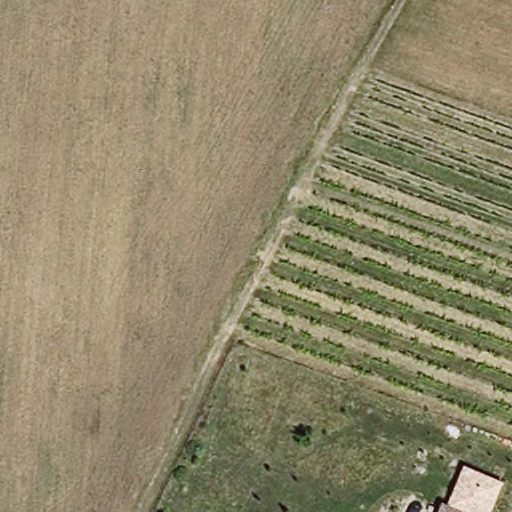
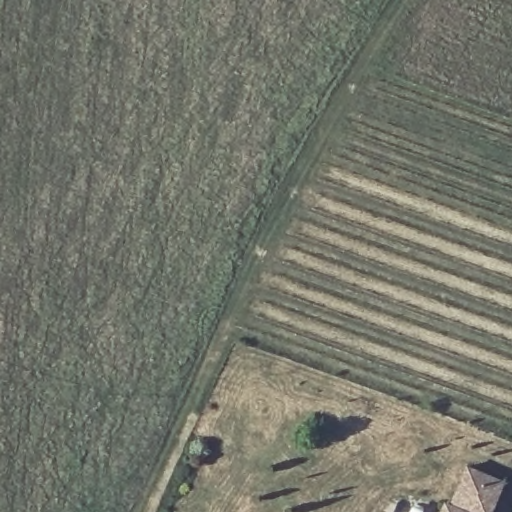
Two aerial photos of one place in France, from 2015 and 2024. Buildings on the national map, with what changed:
unchanged [(447,506),(463,468),(501,483),(490,512),(436,512),(440,502),(447,506)]

